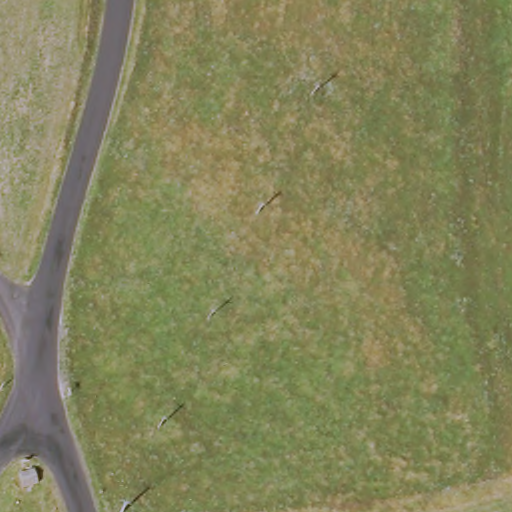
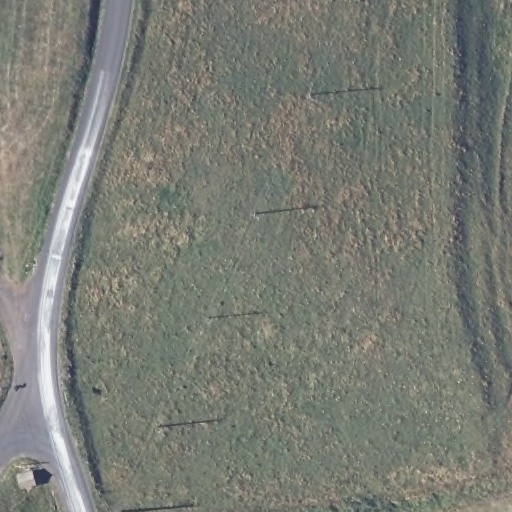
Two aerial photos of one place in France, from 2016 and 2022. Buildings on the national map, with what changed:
unchanged [(31,465),(34,480),(14,484),(11,469),(31,465)]

